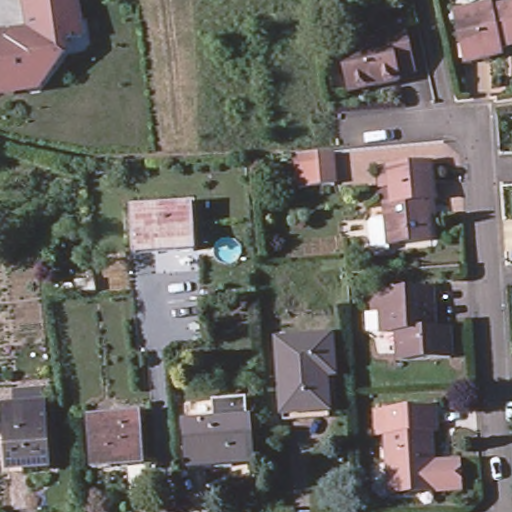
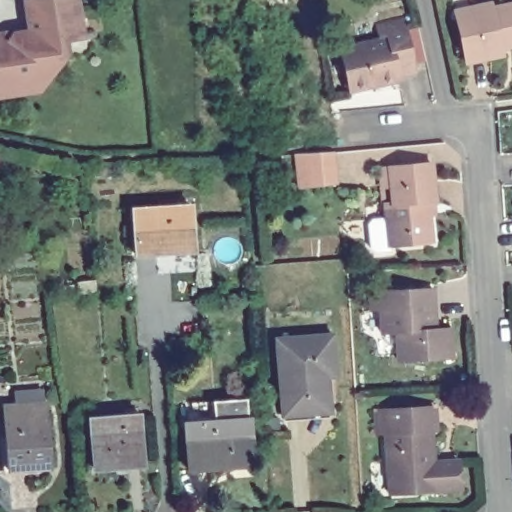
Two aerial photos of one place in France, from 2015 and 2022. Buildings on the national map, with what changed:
unchanged [(9,39),(29,36),(23,1),(30,0),(74,0),(80,36),(62,39),(64,53),(36,90),(0,95),(0,35),(3,35),(9,39)]
unchanged [(460,56),(451,11),(487,4),(487,8),(512,3),(512,45),(495,49),(497,55),(462,63),(460,56)]
unchanged [(344,81),(336,42),(382,32),(380,17),(397,13),(408,65),(392,69),(393,76),(373,80),(345,86),(344,81)]
unchanged [(332,152),(332,188),(297,188),(297,152),(332,152)]
unchanged [(367,220),(371,215),(385,214),(384,200),(391,199),(390,180),(378,181),(377,164),(390,163),(432,161),(435,196),(435,210),(427,210),(430,238),(387,241),(387,246),(373,247),(369,243),(367,220)]
unchanged [(191,203),(195,248),(136,254),(132,208),(191,203)]
unchanged [(377,329),(375,308),(366,308),(365,288),(428,285),(431,325),(391,328),(377,329)]
unchanged [(431,325),(443,324),(446,353),(392,356),(391,328),(431,325)]
unchanged [(327,328),(330,366),(325,366),(326,403),(280,407),(273,333),(327,328)]
unchanged [(0,459),(0,437),(3,436),(0,409),(12,407),(10,395),(37,391),(39,403),(41,402),(51,465),(22,469),(23,475),(3,479),(0,459)]
unchanged [(371,429),(369,406),(428,402),(430,426),(426,426),(380,429),(371,429)]
unchanged [(185,422),(191,421),(190,412),(244,409),(245,428),(186,432),(185,422)]
unchanged [(138,413),(142,464),(92,467),(89,416),(138,413)]
unchanged [(455,485),(384,489),(380,429),(426,426),(429,459),(453,457),(455,485)]
unchanged [(250,476),(187,480),(184,432),(186,432),(245,428),(247,428),(250,476)]

